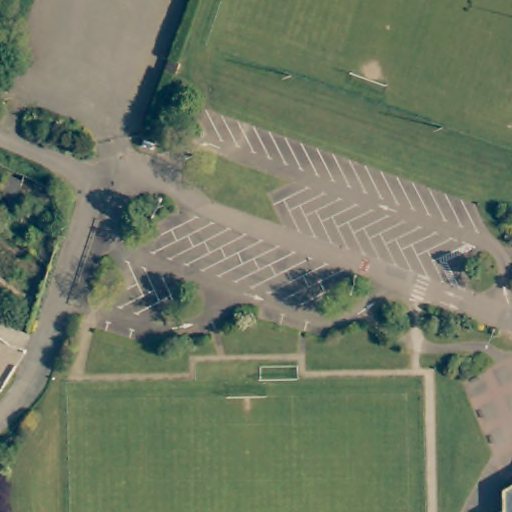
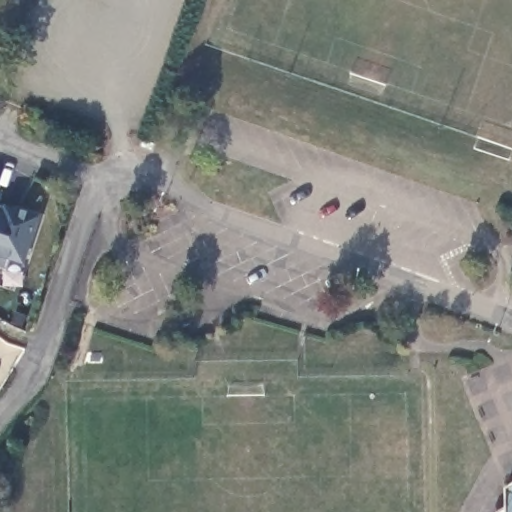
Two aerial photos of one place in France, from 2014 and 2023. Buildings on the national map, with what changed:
unchanged [(179,63),(175,72),(165,69),(170,58),(179,63)]
unchanged [(154,141),(152,148),(141,145),(144,138),(154,141)]
unchanged [(10,207),(0,203),(0,191),(7,173),(20,179),(10,207)]
new [(10,257),(7,269),(0,267),(0,204),(38,216),(24,262),(10,257)]
unchanged [(505,488),(512,484),(512,512),(506,512),(505,488)]

